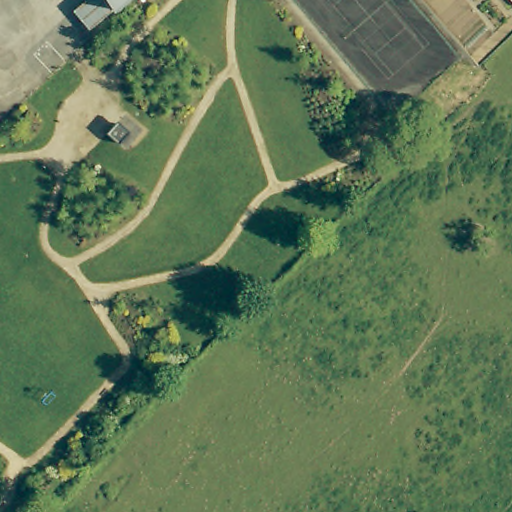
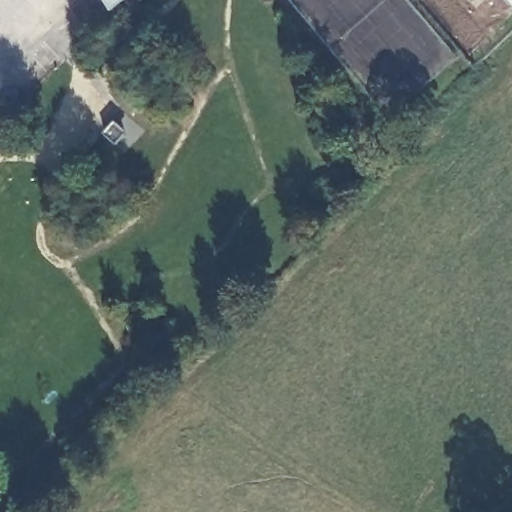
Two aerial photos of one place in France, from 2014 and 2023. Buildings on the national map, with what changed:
unchanged [(126,0),(130,0),(127,1),(126,0)]

